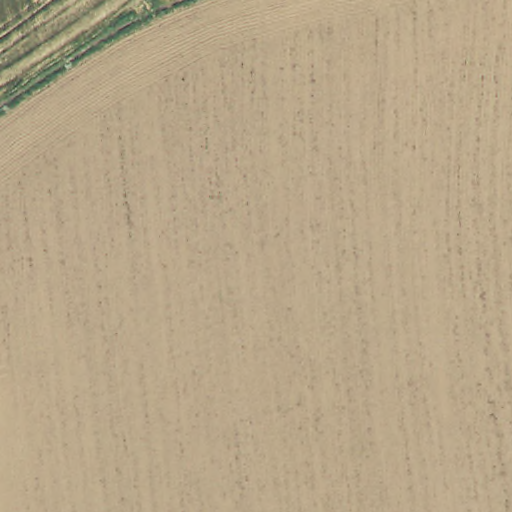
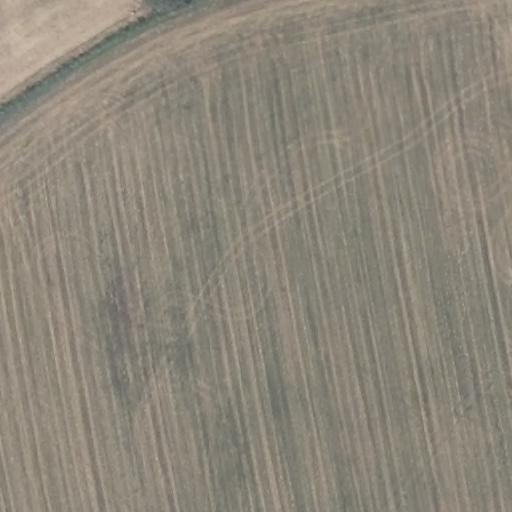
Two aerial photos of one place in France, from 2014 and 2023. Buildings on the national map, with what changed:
[]

